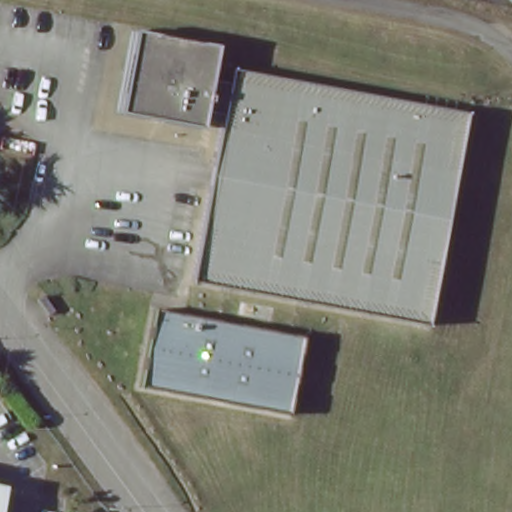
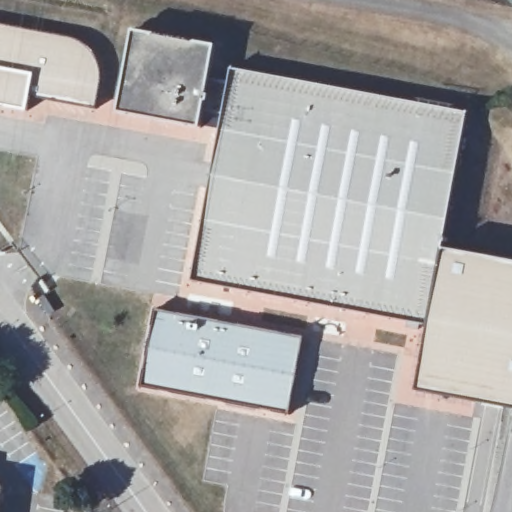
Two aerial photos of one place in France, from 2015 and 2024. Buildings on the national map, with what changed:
new [(46,34),(73,40),(82,45),(91,52),(99,65),(101,76),(94,108),(29,95),(26,110),(0,106),(0,25),(46,34)]
unchanged [(210,45),(204,78),(225,82),(227,69),(462,112),(437,246),(423,325),(187,280),(219,113),(198,109),(195,127),(113,111),(128,30),(210,45)]
new [(442,248),(512,261),(512,407),(416,389),(428,325),(423,325),(437,246),(442,248)]
unchanged [(302,338),(288,412),(143,385),(159,310),(302,338)]
unchanged [(0,500),(0,486),(3,486),(0,500)]

